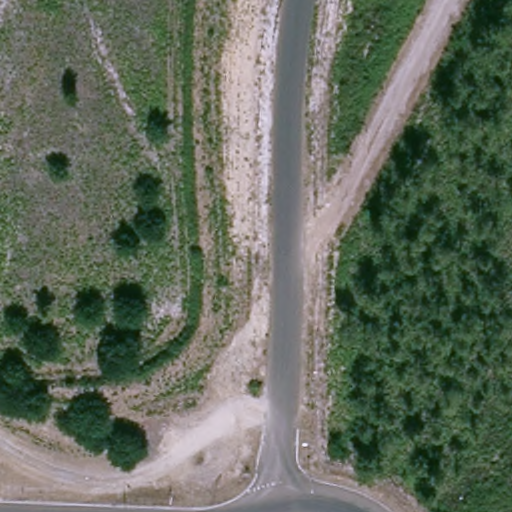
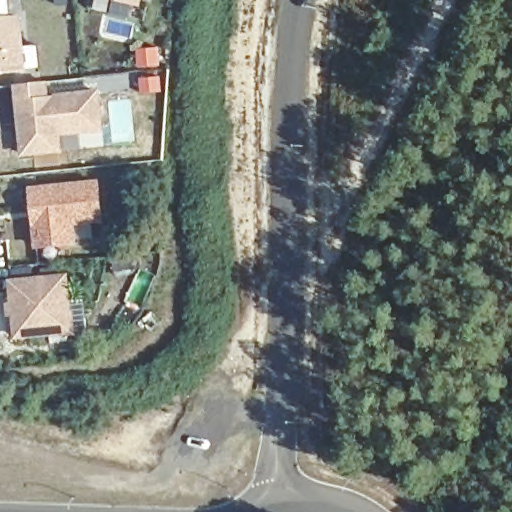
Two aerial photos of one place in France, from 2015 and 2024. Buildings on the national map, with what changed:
new [(144,0),(143,5),(121,0),(144,0)]
new [(25,6),(30,58),(0,61),(0,9),(25,6)]
new [(52,71),(54,86),(104,81),(108,119),(66,123),(67,140),(29,143),(22,74),(52,71)]
new [(36,245),(31,186),(101,179),(105,221),(78,225),(80,244),(36,245)]
new [(72,265),(78,320),(23,326),(17,270),(72,265)]

